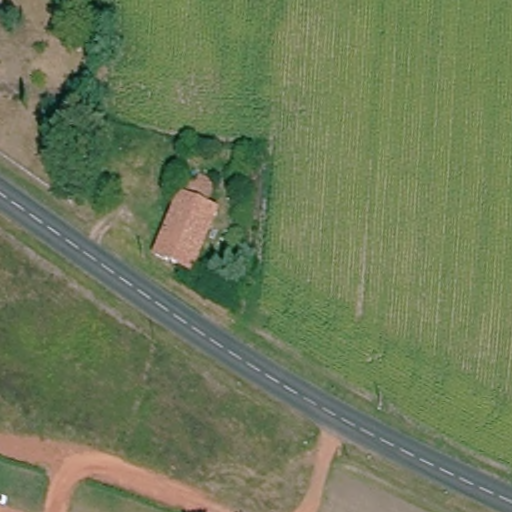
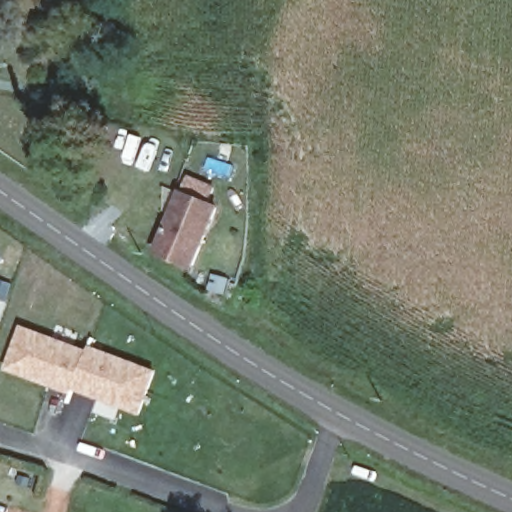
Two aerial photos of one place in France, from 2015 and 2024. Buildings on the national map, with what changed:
unchanged [(210,219),(190,261),(154,245),(179,192),(187,175),(202,182),(212,186),(206,204),(234,215),(229,229),(210,219)]
new [(87,351),(89,346),(158,371),(140,417),(74,392),(72,396),(4,370),(22,326),(87,351)]

